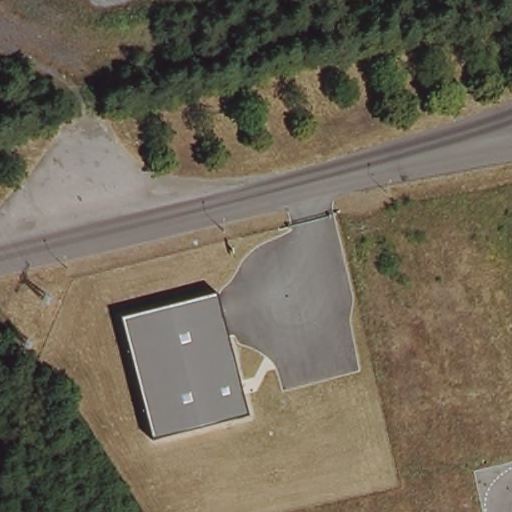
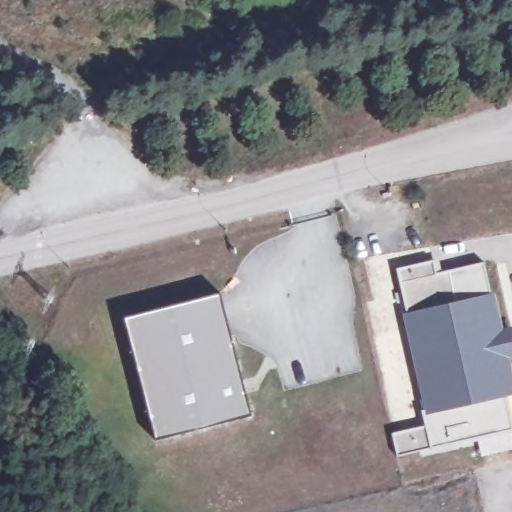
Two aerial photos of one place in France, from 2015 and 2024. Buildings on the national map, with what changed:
new [(407,315),(397,269),(431,261),(433,274),(446,272),(453,304),(407,315)]
new [(490,294),(495,294),(502,328),(512,327),(512,358),(508,359),(512,373),(512,395),(503,397),(510,429),(430,448),(397,456),(392,434),(425,426),(421,410),(425,409),(401,315),(407,315),(453,304),(446,272),(483,263),(490,294)]
unchanged [(252,417),(154,441),(123,319),(220,294),(252,417)]

